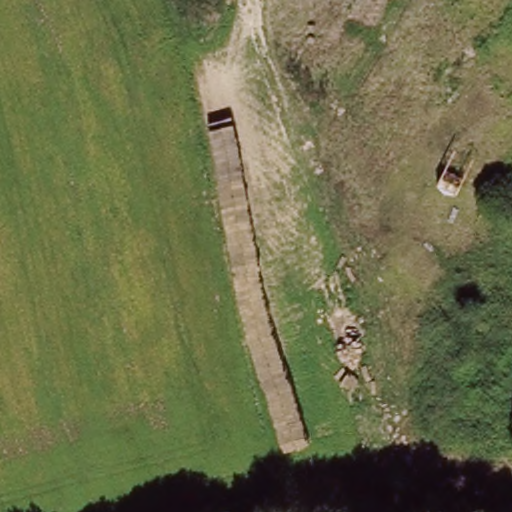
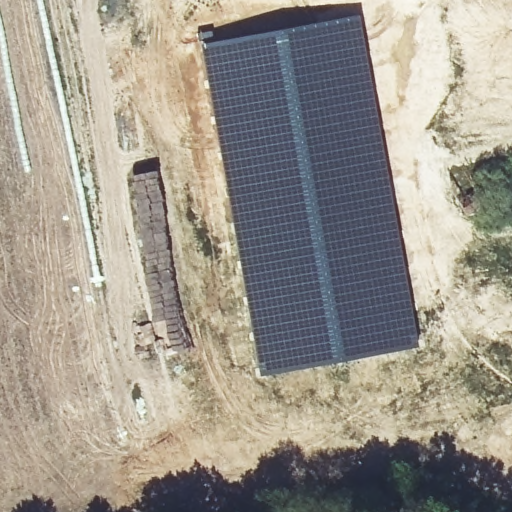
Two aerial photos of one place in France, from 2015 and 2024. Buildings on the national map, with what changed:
new [(359,14),(391,186),(406,273),(407,294),(407,300),(404,312),(406,338),(387,342),(388,345),(349,358),(292,368),(290,362),(286,362),(285,361),(279,361),(272,353),(269,349),(257,351),(231,218),(202,42),(359,14)]

